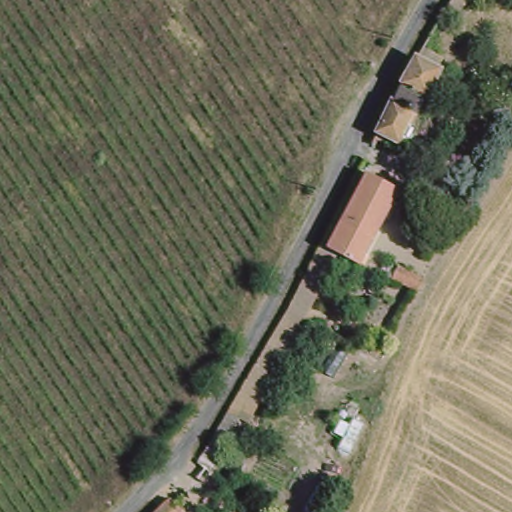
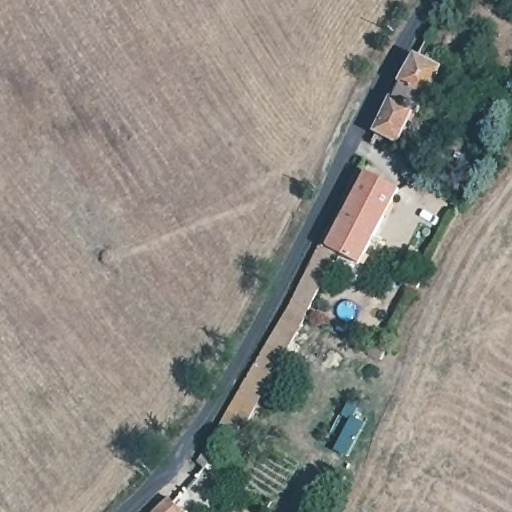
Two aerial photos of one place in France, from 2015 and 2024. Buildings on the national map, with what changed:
unchanged [(447,3),(449,0),(459,0),(454,7),(447,3)]
unchanged [(399,146),(379,134),(417,60),(441,73),(399,146)]
unchanged [(368,175),(397,190),(359,264),(329,249),(368,175)]
unchanged [(417,293),(391,279),(397,268),(423,282),(417,293)]
unchanged [(228,415),(284,309),(286,309),(291,298),(311,309),(306,320),(248,426),(228,415)]
unchanged [(184,512),(160,512),(171,501),(186,508),(184,512)]

